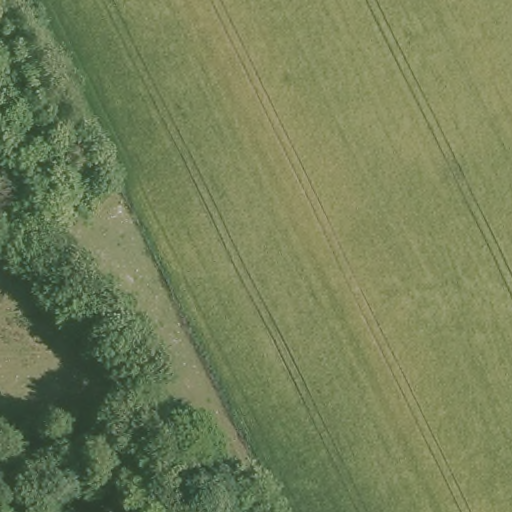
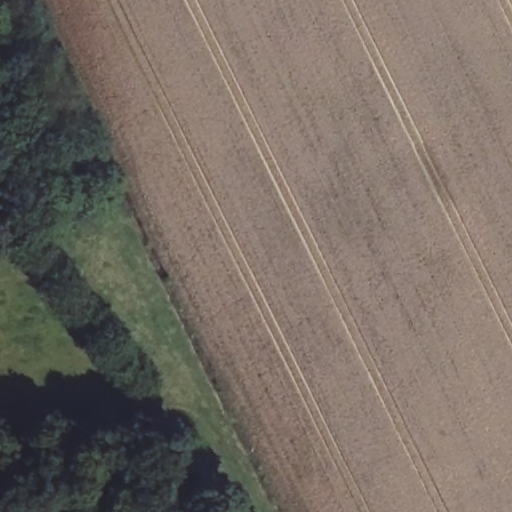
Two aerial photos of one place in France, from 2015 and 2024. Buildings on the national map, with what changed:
unchanged [(55,166),(38,182),(12,146),(30,133),(55,166)]

